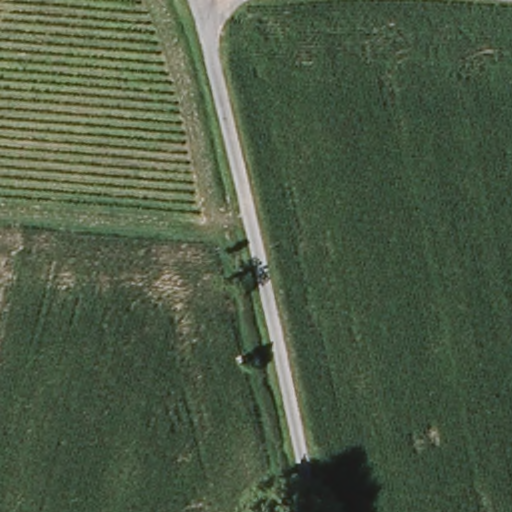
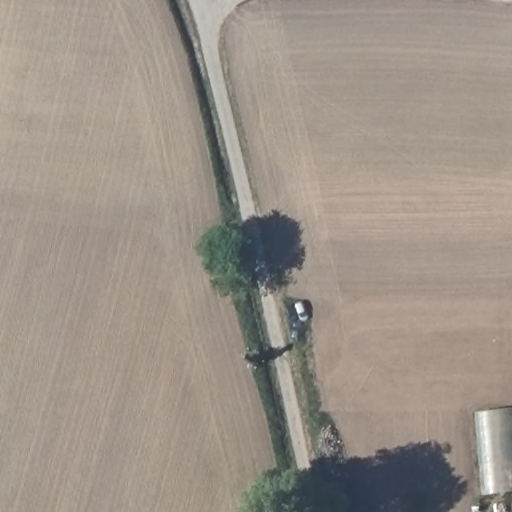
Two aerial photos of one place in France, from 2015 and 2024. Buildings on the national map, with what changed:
new [(512,409),(512,492),(485,495),(477,411),(512,409)]

